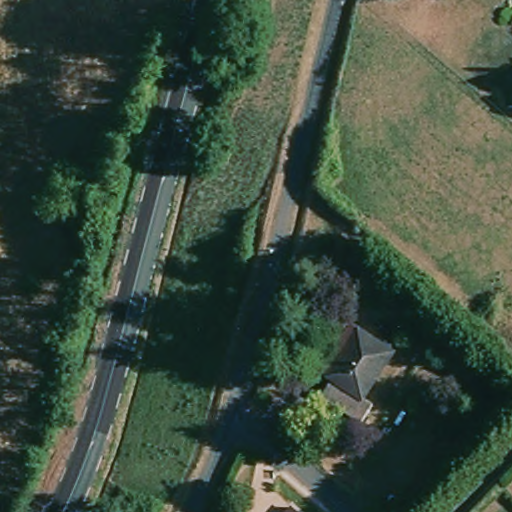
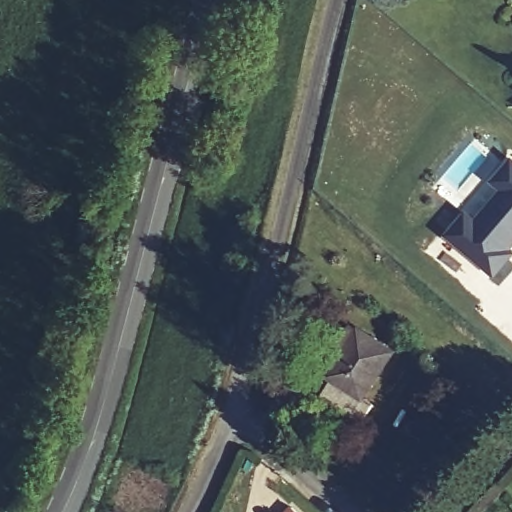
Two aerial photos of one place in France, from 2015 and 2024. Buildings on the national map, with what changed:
new [(506,251),(511,255),(494,274),(449,235),(467,215),(476,222),(505,189),(495,180),(512,163),(512,244),(506,251)]
unchanged [(357,398),(367,405),(356,422),(316,396),(327,379),(323,376),(316,371),(346,325),(354,330),(387,352),(357,398)]
unchanged [(302,512),(284,512),(292,503),(302,512)]

